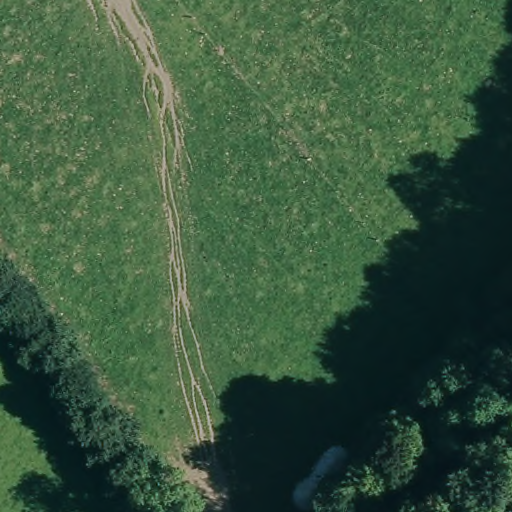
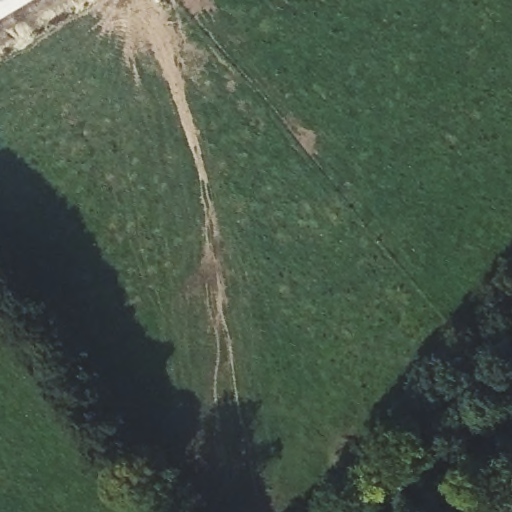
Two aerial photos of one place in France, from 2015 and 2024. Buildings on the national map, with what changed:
new [(31,0),(0,19),(0,0),(31,0)]

